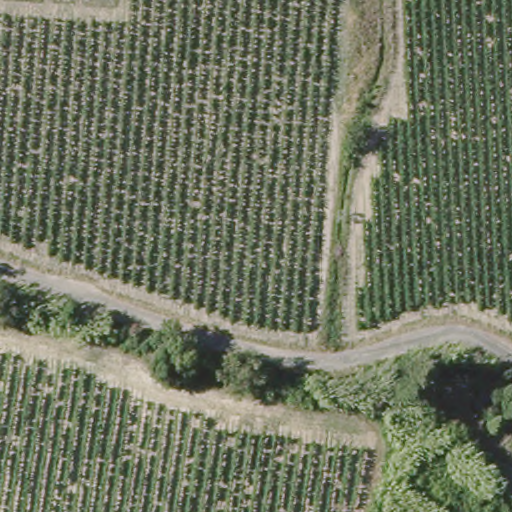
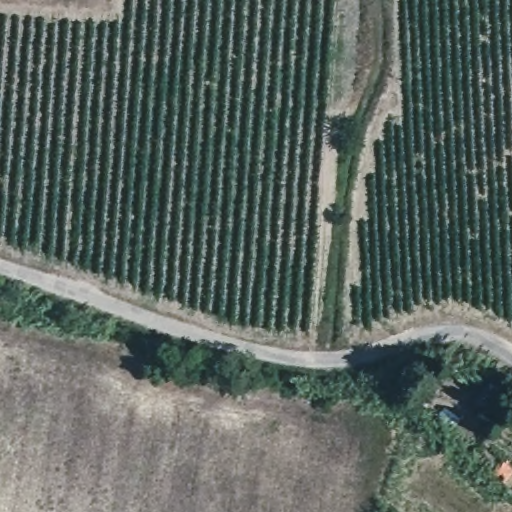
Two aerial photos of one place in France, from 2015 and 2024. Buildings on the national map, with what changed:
[]

